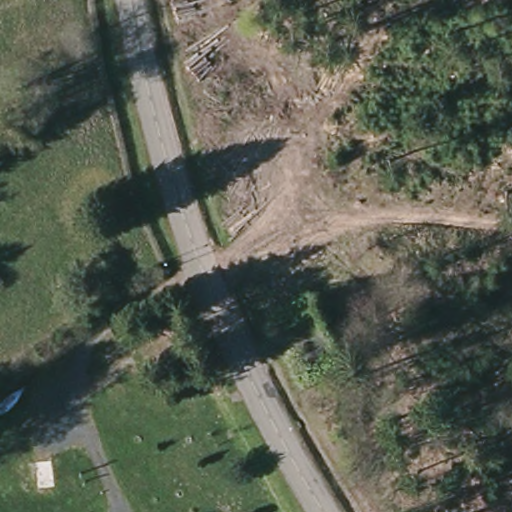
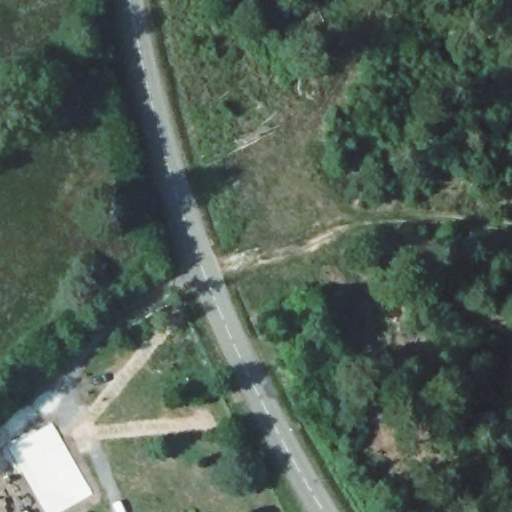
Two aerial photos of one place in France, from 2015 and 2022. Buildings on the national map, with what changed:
new [(52,423),(92,493),(60,512),(45,512),(9,448),(52,423)]

